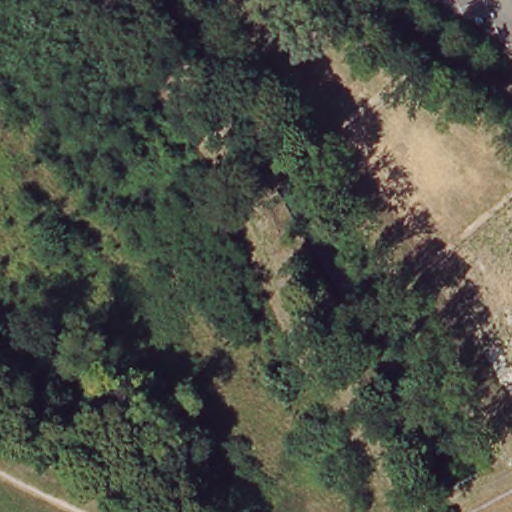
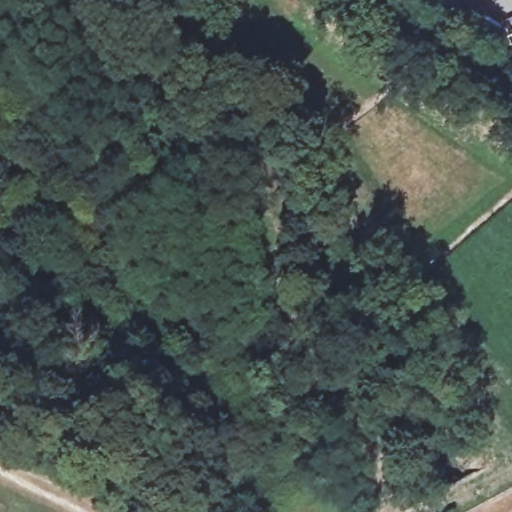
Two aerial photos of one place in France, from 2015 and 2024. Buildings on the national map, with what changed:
unchanged [(141,387),(131,400),(125,396),(124,395),(123,394),(117,389),(118,389),(127,376),(134,382),(141,387)]

